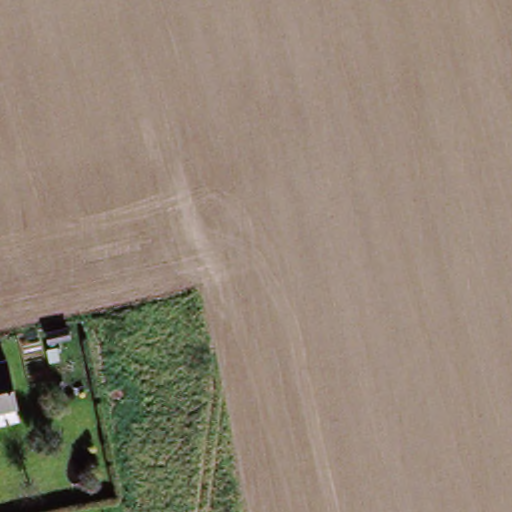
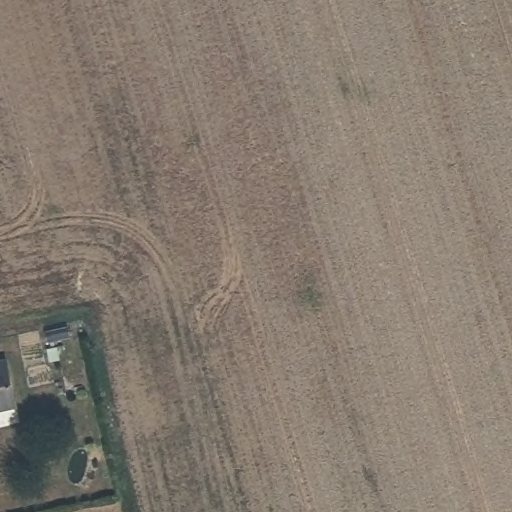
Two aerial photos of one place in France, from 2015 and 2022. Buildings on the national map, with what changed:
unchanged [(8,358),(19,404),(0,408),(0,360),(8,358)]

